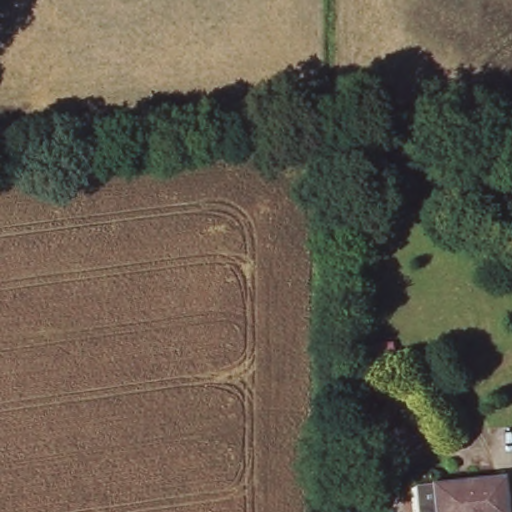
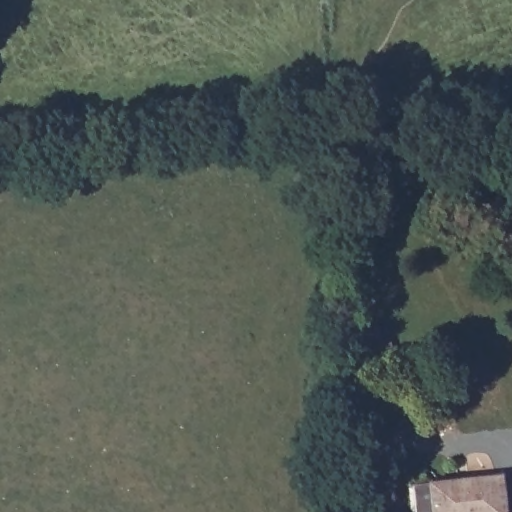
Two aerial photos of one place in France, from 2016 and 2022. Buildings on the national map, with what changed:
unchanged [(392,338),(393,352),(368,354),(366,341),(392,338)]
unchanged [(508,512),(418,512),(415,485),(504,476),(508,512)]

